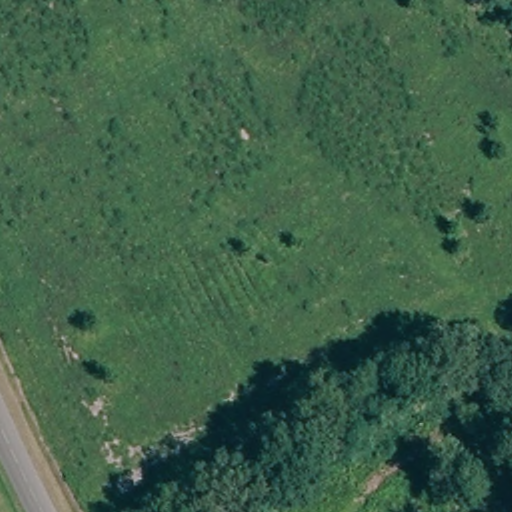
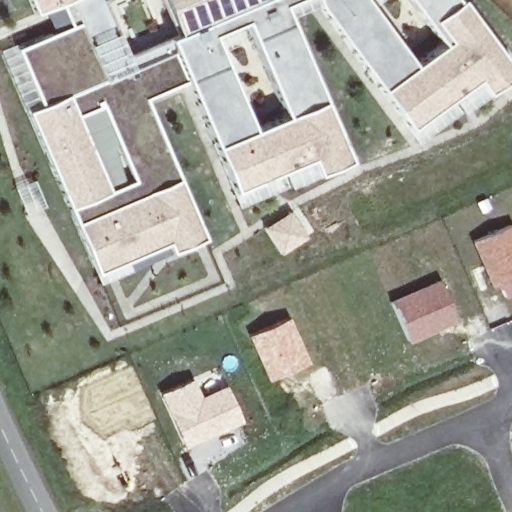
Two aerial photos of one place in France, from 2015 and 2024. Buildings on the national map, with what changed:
new [(457,1),(458,0),(460,0),(512,69),(512,71),(486,91),(459,111),(448,99),(409,129),(317,5),(289,18),(350,159),(319,174),(291,186),(285,174),(235,196),(185,82),(146,100),(206,240),(175,253),(171,244),(101,274),(30,113),(44,106),(20,51),(71,29),(62,5),(39,15),(32,0),(105,0),(104,0),(128,56),(170,37),(179,33),(164,0),(364,0),(413,65),(442,43),(411,0),(456,0),(457,1)]
new [(299,206),(314,232),(288,247),(273,221),(299,206)]
new [(512,226),(512,293),(498,299),(492,286),(486,289),(470,240),(510,223),(512,226)]
new [(437,277),(455,321),(408,342),(389,299),(437,277)]
new [(288,315),(310,362),(266,381),(246,334),(288,315)]
new [(190,376),(200,394),(224,383),(242,419),(185,447),(157,392),(190,376)]

